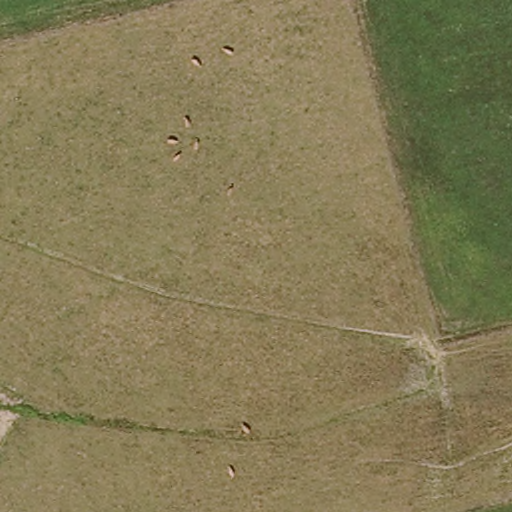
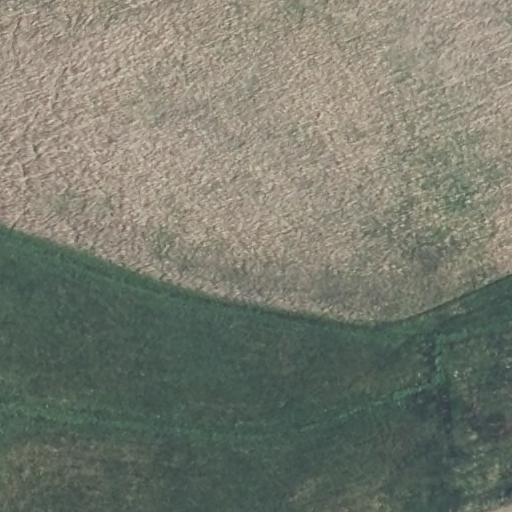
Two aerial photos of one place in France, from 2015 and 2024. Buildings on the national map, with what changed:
[]

